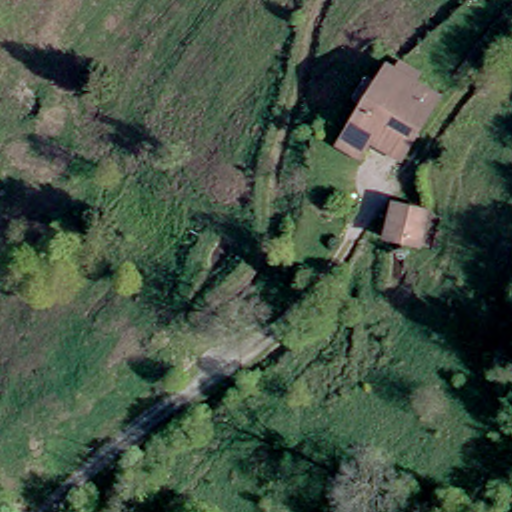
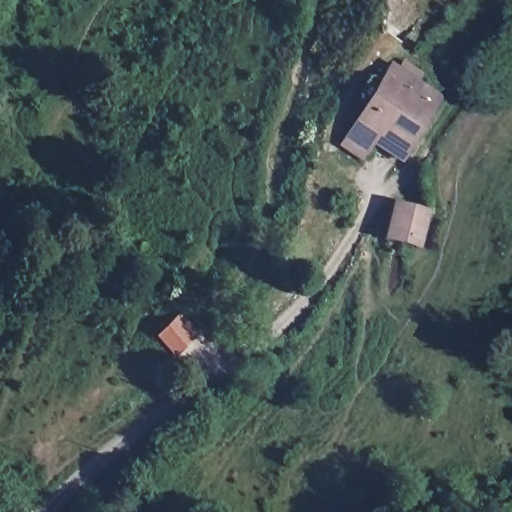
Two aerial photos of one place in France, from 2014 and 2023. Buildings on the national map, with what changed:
unchanged [(402,76),(438,102),(399,163),(377,146),(365,161),(350,150),(347,147),(357,134),(402,76)]
unchanged [(425,223),(421,249),(404,248),(399,255),(390,248),(396,217),(425,223)]
new [(177,318),(194,336),(172,357),(155,339),(177,318)]

